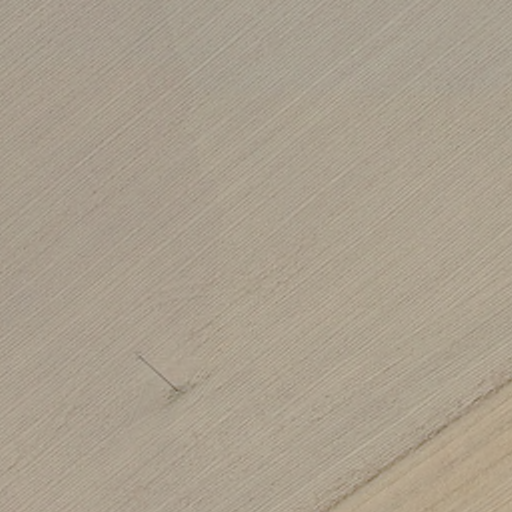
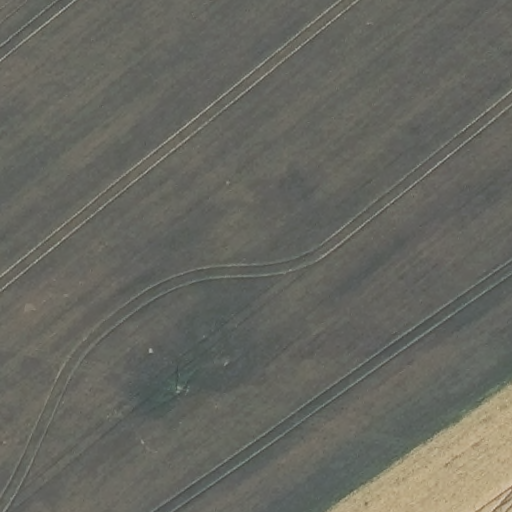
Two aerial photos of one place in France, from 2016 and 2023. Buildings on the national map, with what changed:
[]

